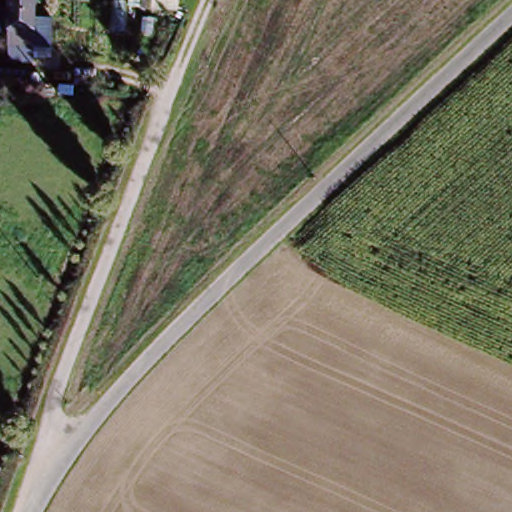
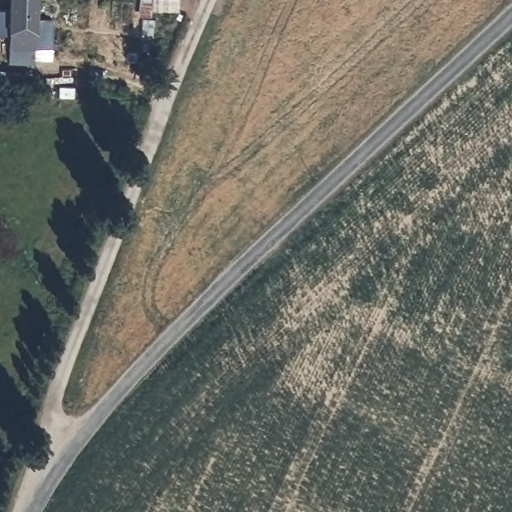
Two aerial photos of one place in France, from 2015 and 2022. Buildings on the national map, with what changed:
unchanged [(61,21),(59,46),(43,45),(42,59),(11,55),(15,25),(0,23),(0,12),(15,15),(17,0),(47,0),(45,20),(61,21)]

